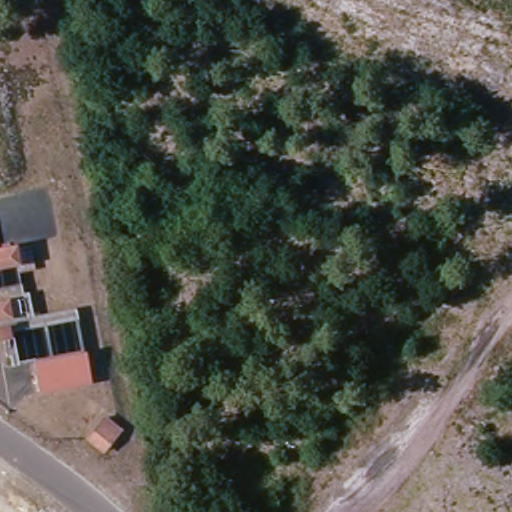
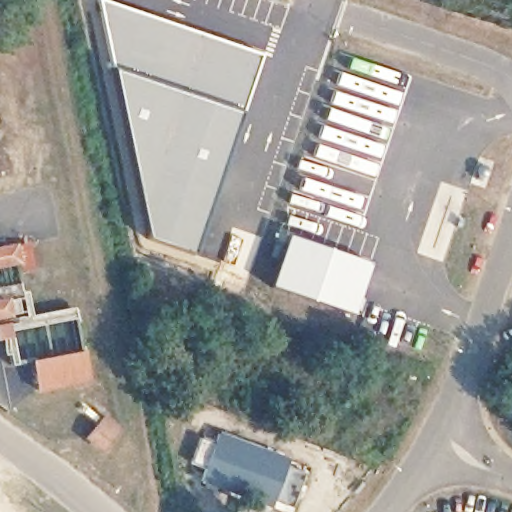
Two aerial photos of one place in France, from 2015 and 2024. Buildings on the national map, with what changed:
new [(264,54),(254,85),(242,114),(212,209),(192,254),(146,238),(105,44),(98,0),(107,0),(185,26),(264,54)]
new [(273,285),(289,237),(371,264),(354,314),(273,285)]
unchanged [(28,292),(17,293),(20,316),(0,319),(0,252),(24,249),(28,292)]
unchanged [(33,399),(29,366),(8,369),(4,344),(0,344),(0,328),(77,318),(86,392),(33,399)]
unchanged [(120,430),(103,452),(90,442),(107,422),(120,430)]
new [(290,508),(274,502),(272,507),(198,482),(203,468),(190,463),(200,438),(213,442),(217,431),(291,459),(289,464),(303,471),(290,508)]

